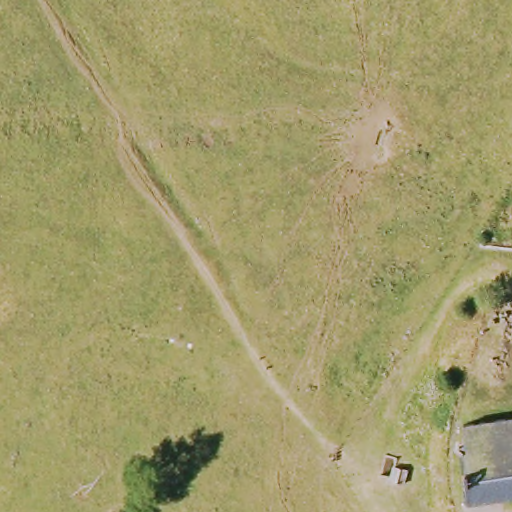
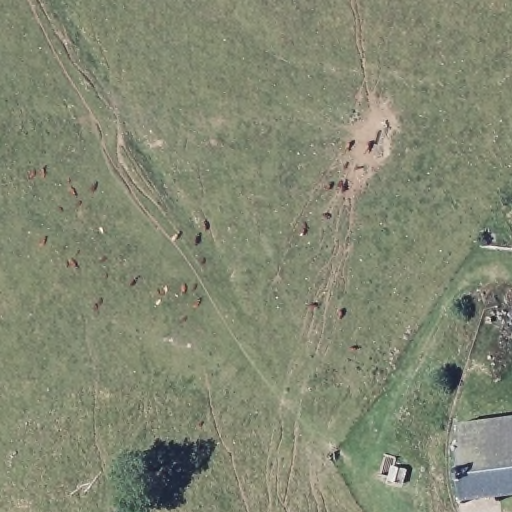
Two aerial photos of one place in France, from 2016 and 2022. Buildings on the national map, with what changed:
unchanged [(457,431),(512,423),(512,502),(462,509),(457,431)]

